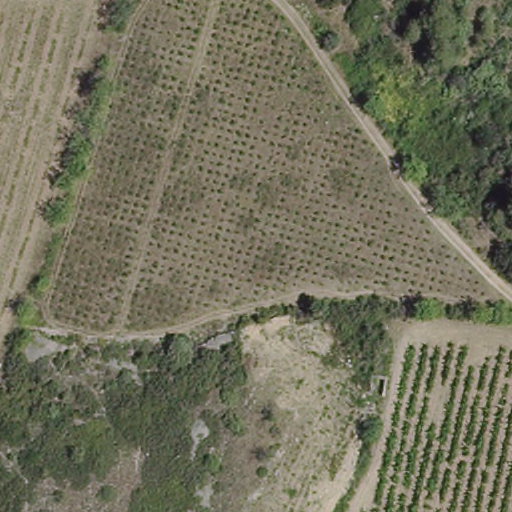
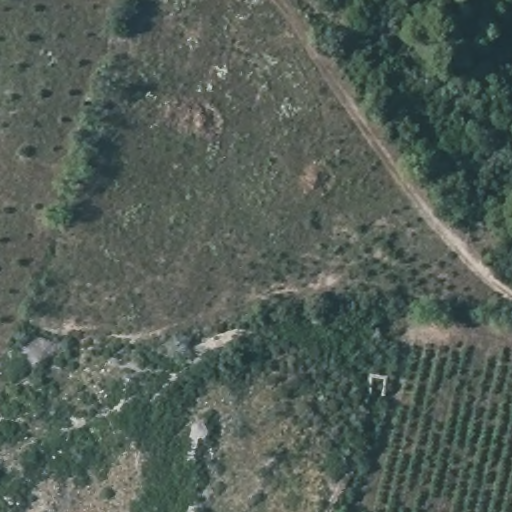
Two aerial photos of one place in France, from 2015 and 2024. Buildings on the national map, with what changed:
unchanged [(394,378),(390,394),(380,392),(382,378),(394,378)]

